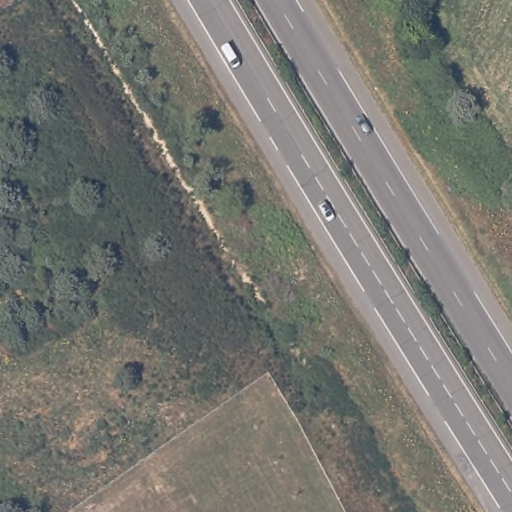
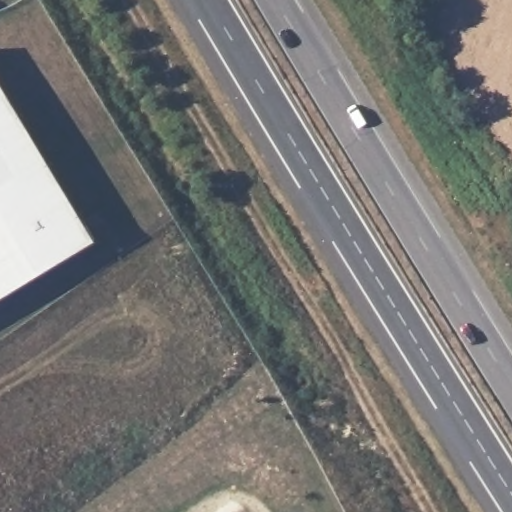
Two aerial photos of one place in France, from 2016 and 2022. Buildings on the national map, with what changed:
new [(0,300),(0,80),(98,240),(0,300)]

